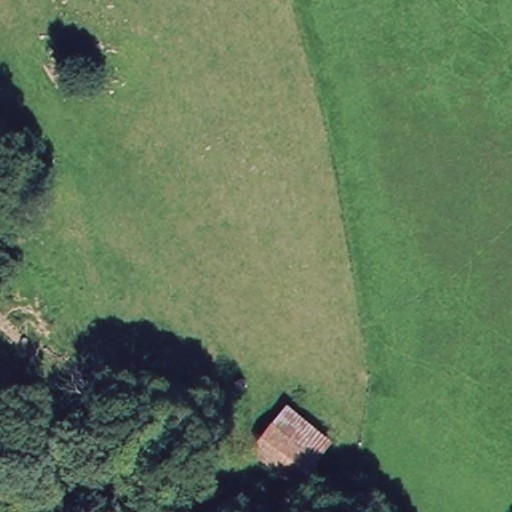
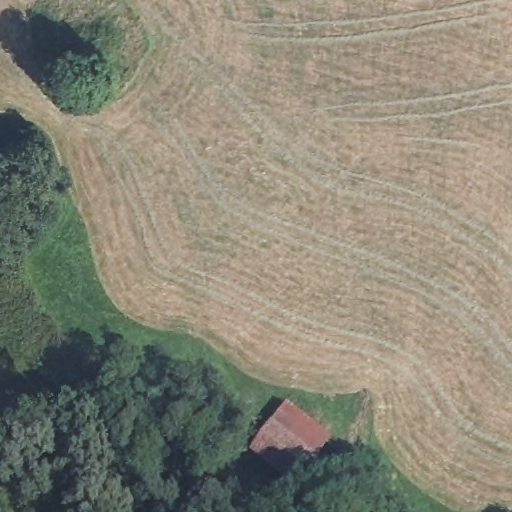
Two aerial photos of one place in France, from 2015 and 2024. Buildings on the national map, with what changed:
unchanged [(264,443),(292,414),(333,455),(336,457),(326,468),(307,486),(264,443)]

